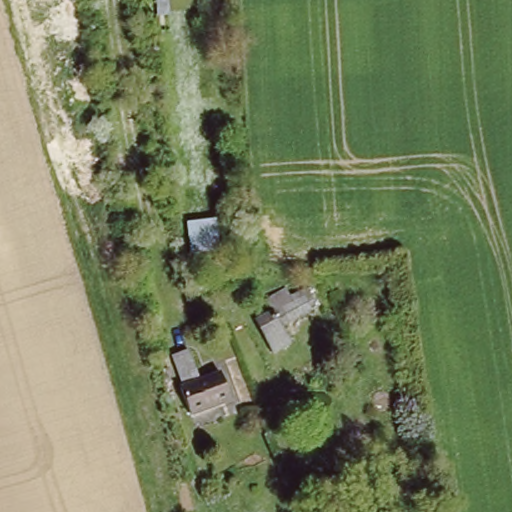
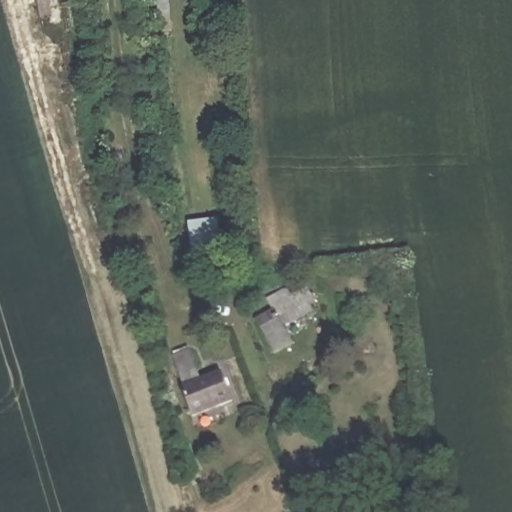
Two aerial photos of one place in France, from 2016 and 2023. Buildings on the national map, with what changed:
unchanged [(276,305),(279,311),(292,304),(287,296),(304,287),(316,310),(286,326),(291,336),(267,348),(253,317),(276,305)]
unchanged [(190,416),(167,342),(188,338),(205,380),(222,375),(231,405),(190,416)]

